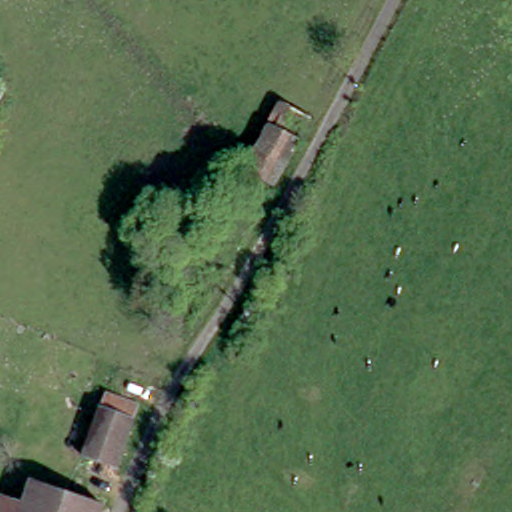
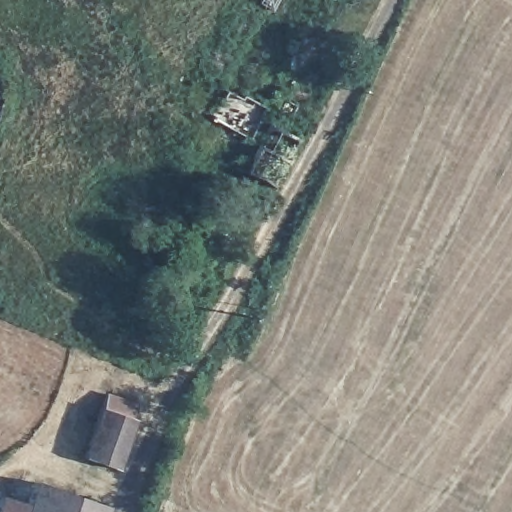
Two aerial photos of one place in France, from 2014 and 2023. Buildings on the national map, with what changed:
unchanged [(275,182),(233,161),(239,148),(253,155),(271,119),(300,133),(275,182)]
unchanged [(138,411),(117,470),(84,458),(104,400),(138,411)]
unchanged [(24,478),(101,505),(99,512),(0,512),(0,496),(16,502),(24,478)]

